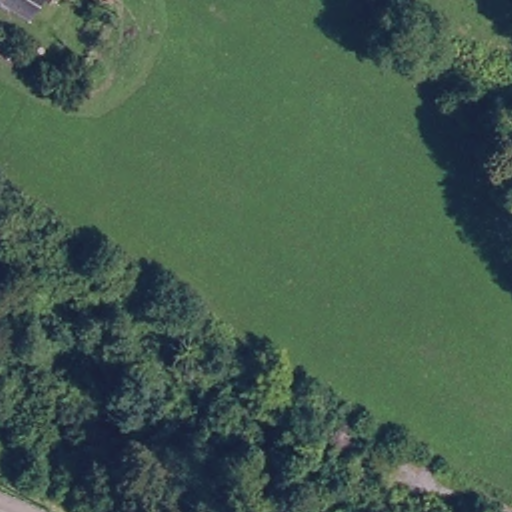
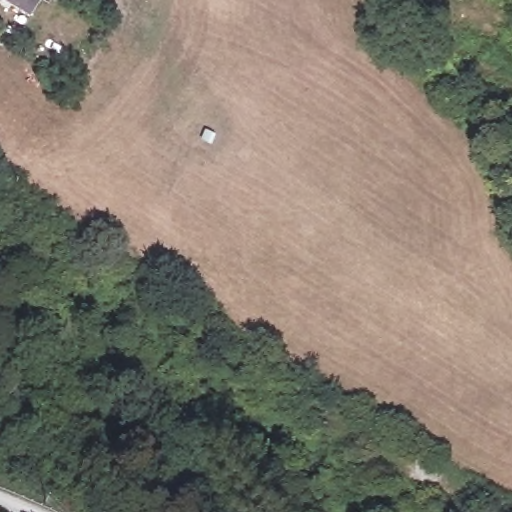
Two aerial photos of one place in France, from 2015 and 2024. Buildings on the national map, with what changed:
unchanged [(41,21),(0,1),(0,0),(53,0),(41,21)]

